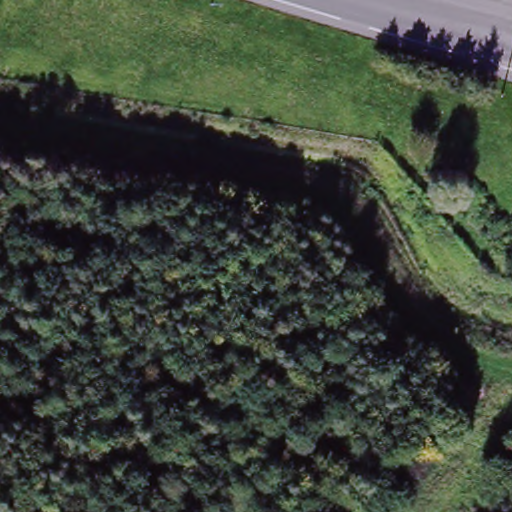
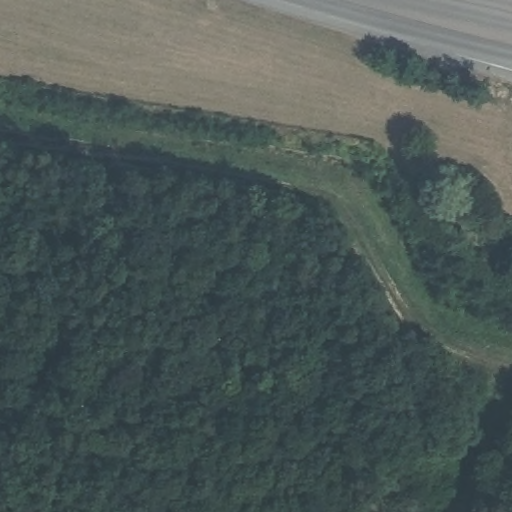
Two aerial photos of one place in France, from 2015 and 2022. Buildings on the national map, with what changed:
[]

